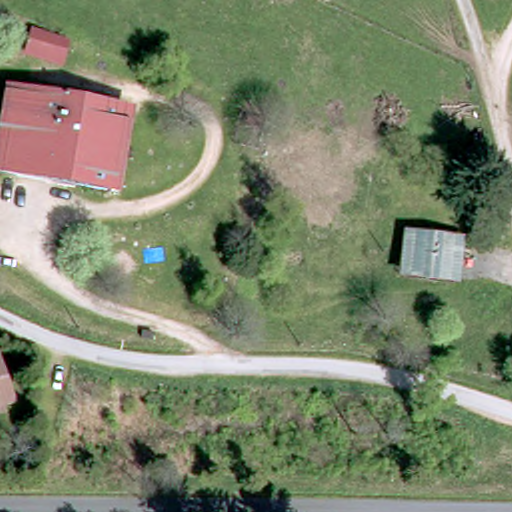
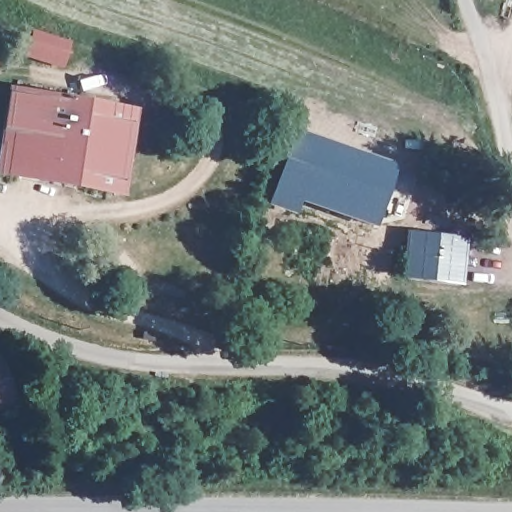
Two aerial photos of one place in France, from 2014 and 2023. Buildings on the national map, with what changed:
unchanged [(32,31),(64,42),(57,62),(25,51),(32,31)]
unchanged [(0,174),(0,106),(2,91),(125,111),(112,192),(63,185),(12,176),(0,174)]
new [(264,206),(293,127),(396,164),(372,227),(299,202),(293,217),(264,206)]
unchanged [(406,235),(455,245),(447,283),(400,274),(406,235)]
unchanged [(13,399),(0,404),(0,365),(13,399)]

